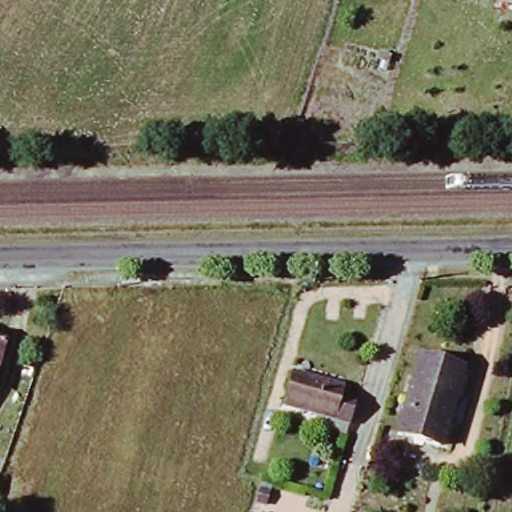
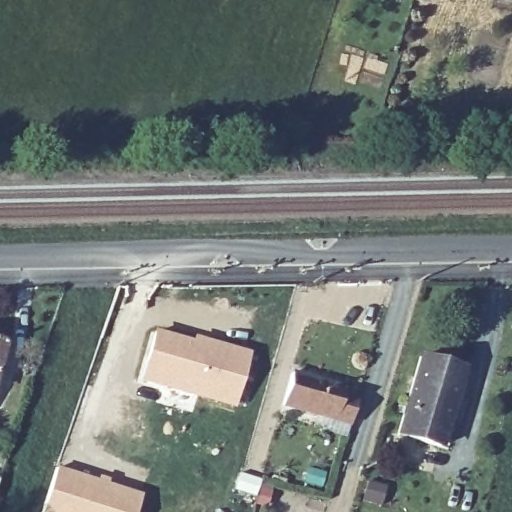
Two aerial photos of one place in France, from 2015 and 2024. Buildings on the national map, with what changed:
unchanged [(495,7),(512,10),(512,25),(492,21),(495,7)]
new [(159,331),(197,342),(199,338),(207,339),(251,352),(237,404),(165,383),(145,377),(151,358),(159,331)]
unchanged [(0,366),(0,349),(5,351),(0,366)]
unchanged [(465,368),(443,444),(396,431),(418,354),(465,368)]
unchanged [(347,428),(282,408),(292,369),(345,384),(346,393),(356,394),(347,428)]
new [(58,467),(144,494),(138,512),(43,512),(58,467)]
unchanged [(0,477),(0,475),(1,475),(0,477)]

